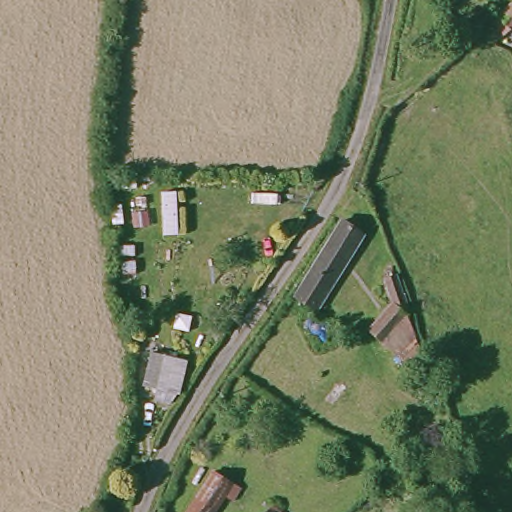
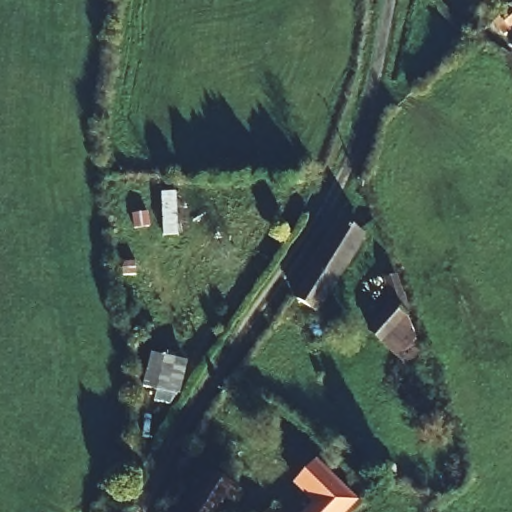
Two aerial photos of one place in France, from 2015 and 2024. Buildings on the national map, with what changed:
unchanged [(507,26),(512,22),(512,33),(507,26)]
unchanged [(361,235),(317,315),(291,299),(312,264),(338,220),(361,235)]
unchanged [(396,355),(380,343),(367,332),(391,301),(382,276),(391,271),(407,309),(403,314),(411,335),(396,355)]
unchanged [(152,399),(157,386),(145,382),(158,351),(188,362),(178,393),(168,406),(152,399)]
new [(349,512),(303,512),(311,503),(293,485),(317,460),(359,502),(349,512)]
unchanged [(183,512),(213,470),(220,475),(227,480),(229,486),(209,512),(183,512)]
unchanged [(277,508),(281,512),(274,512),(276,510),(277,508)]

